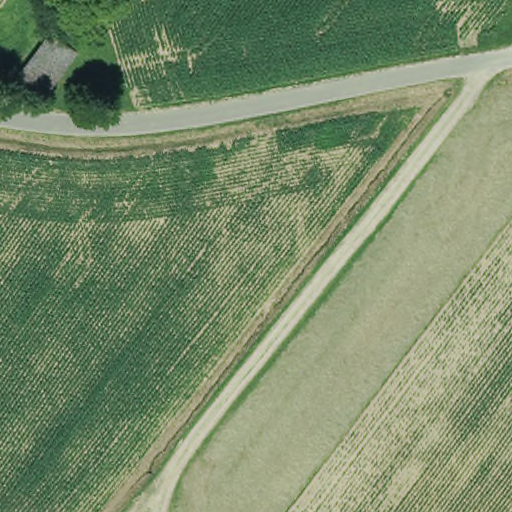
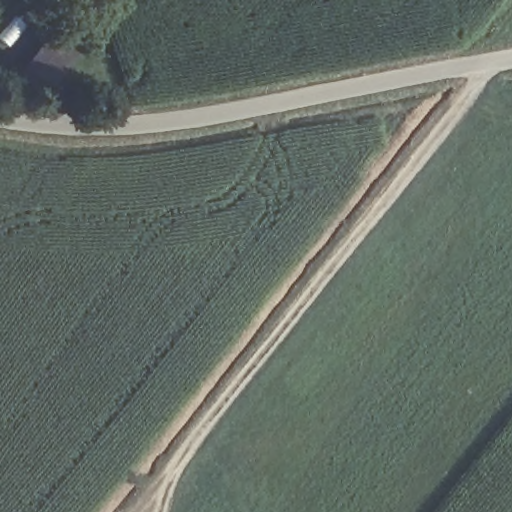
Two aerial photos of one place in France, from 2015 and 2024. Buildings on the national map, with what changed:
unchanged [(79,51),(47,95),(16,72),(49,32),(79,51)]

